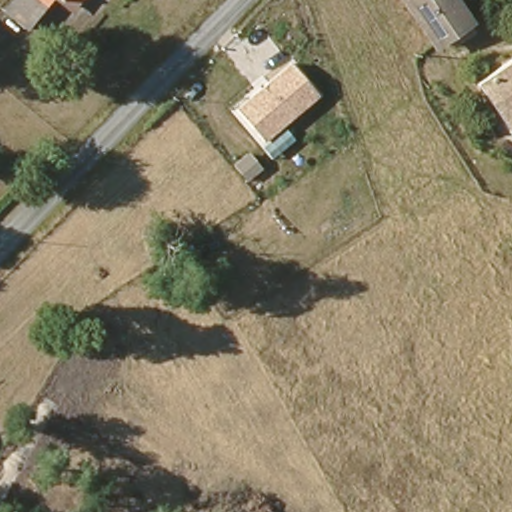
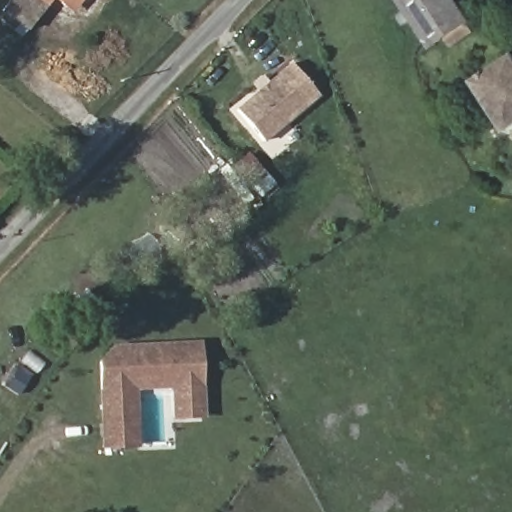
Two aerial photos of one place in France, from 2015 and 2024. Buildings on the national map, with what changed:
unchanged [(20,27),(1,9),(8,0),(53,0),(23,30),(20,27)]
unchanged [(426,0),(410,11),(402,0),(426,0)]
unchanged [(436,45),(410,11),(426,0),(456,0),(471,21),(436,45)]
unchanged [(266,141),(237,108),(292,62),(320,97),(266,141)]
unchanged [(512,62),(512,120),(485,81),(512,62)]
new [(101,450),(97,360),(113,345),(202,341),(205,418),(173,420),(171,389),(137,390),(140,447),(101,450)]

